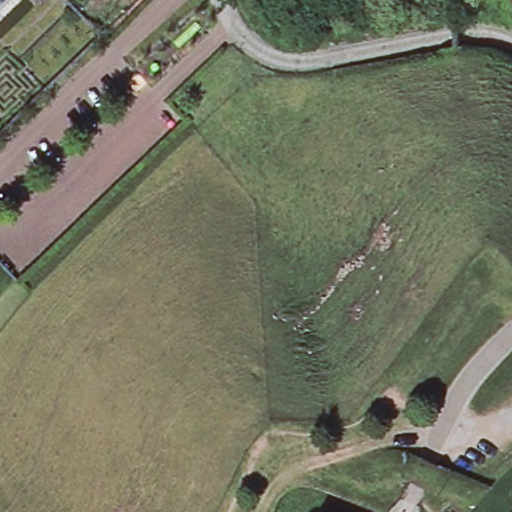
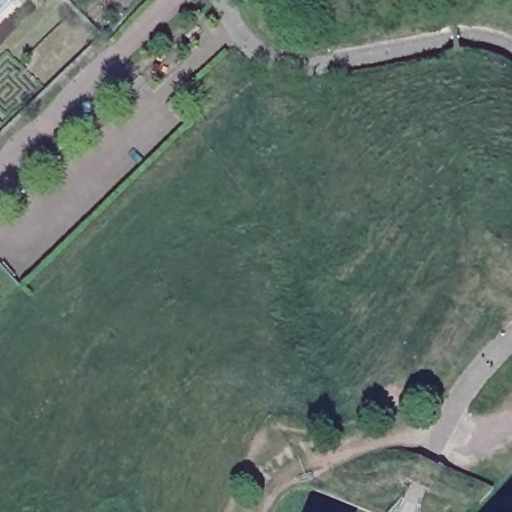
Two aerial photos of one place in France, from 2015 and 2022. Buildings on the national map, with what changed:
unchanged [(0,0),(27,0),(0,26),(0,0)]
unchanged [(458,20),(460,50),(450,50),(450,20),(458,20)]
unchanged [(417,456),(485,482),(471,505),(407,480),(417,456)]

